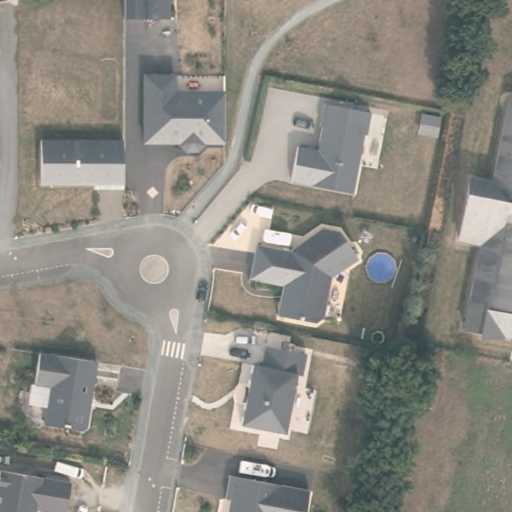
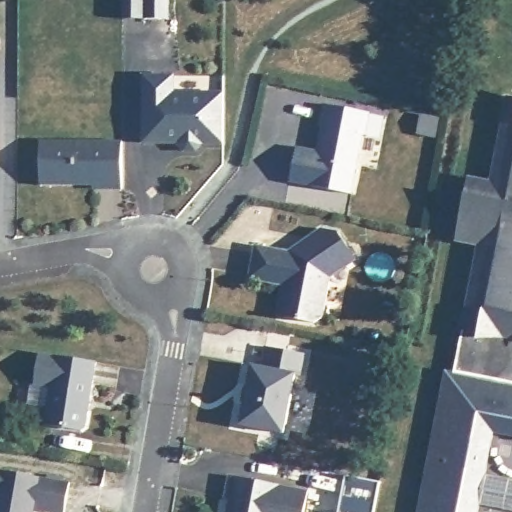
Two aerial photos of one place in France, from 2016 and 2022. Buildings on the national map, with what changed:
unchanged [(142,20),(143,0),(168,0),(167,20),(142,20)]
unchanged [(2,10),(13,45),(0,49),(0,10),(2,10)]
unchanged [(172,75),(172,91),(222,92),(222,142),(200,142),(200,145),(195,150),(184,150),(178,144),(178,141),(142,141),(142,75),(172,75)]
unchanged [(512,139),(502,138),(510,98),(512,98),(512,139)]
unchanged [(367,111),(363,133),(361,133),(350,192),(291,181),(297,146),(315,149),(320,125),(317,124),(322,103),(367,111)]
unchanged [(122,139),(122,186),(42,186),(43,138),(122,139)]
unchanged [(483,234),(462,230),(474,168),(496,172),(502,138),(512,139),(512,327),(467,318),(483,234)]
unchanged [(254,245),(287,251),(287,250),(320,228),(336,231),(355,258),(327,277),(320,317),(312,322),(282,316),(287,293),(281,285),(247,278),(254,245)]
new [(454,371),(467,318),(512,327),(512,437),(494,434),(479,512),(417,512),(446,370),(454,371)]
unchanged [(310,353),(306,374),(300,373),(288,432),(244,424),(256,364),(266,366),(270,345),(310,353)]
unchanged [(43,353),(94,361),(84,426),(79,430),(42,424),(47,386),(32,384),(37,352),(43,353)]
unchanged [(67,484),(63,512),(38,512),(36,512),(35,512),(0,512),(0,472),(67,484)]
unchanged [(307,490),(302,512),(225,512),(227,498),(222,497),(227,475),(307,490)]

